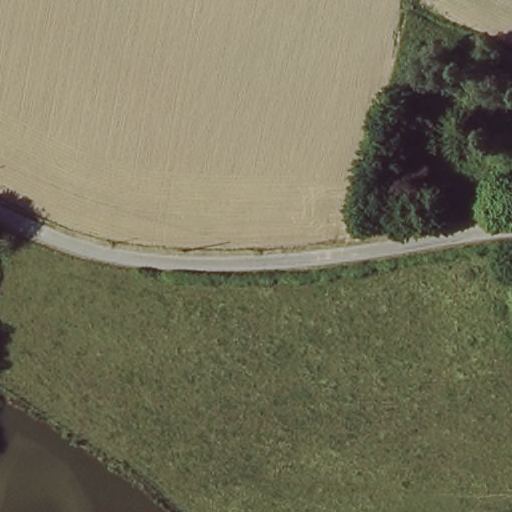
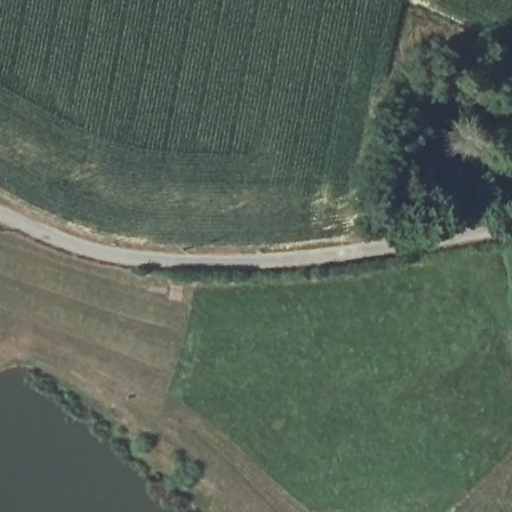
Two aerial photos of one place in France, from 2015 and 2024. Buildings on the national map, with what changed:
[]

